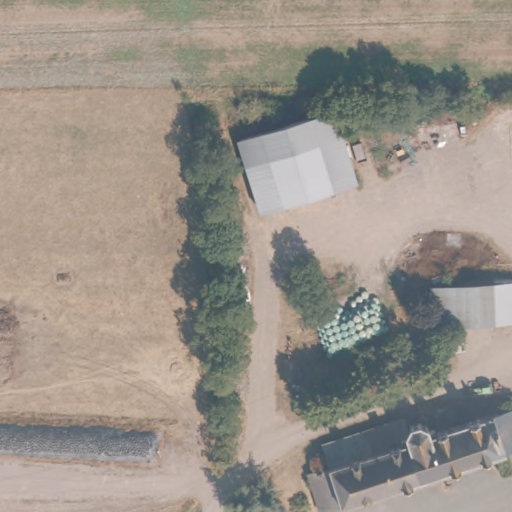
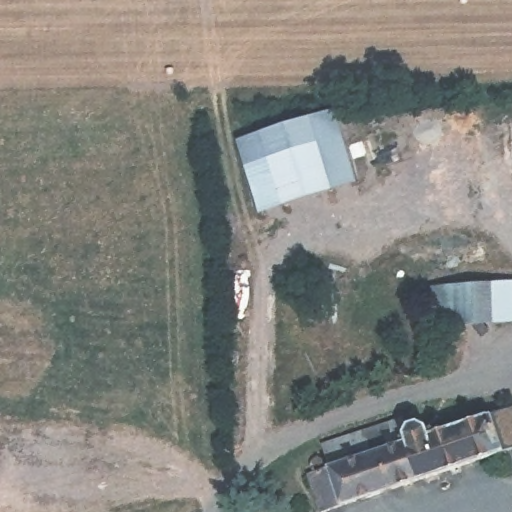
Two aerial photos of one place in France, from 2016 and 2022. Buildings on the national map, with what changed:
unchanged [(341,125),(355,171),(262,199),(248,153),(341,125)]
unchanged [(512,282),(512,323),(437,327),(435,287),(512,282)]
unchanged [(512,414),(512,456),(452,475),(441,436),(512,414)]
unchanged [(337,471),(329,445),(408,420),(412,430),(432,426),(438,430),(441,436),(452,475),(343,512),(327,512),(316,478),(337,471)]

